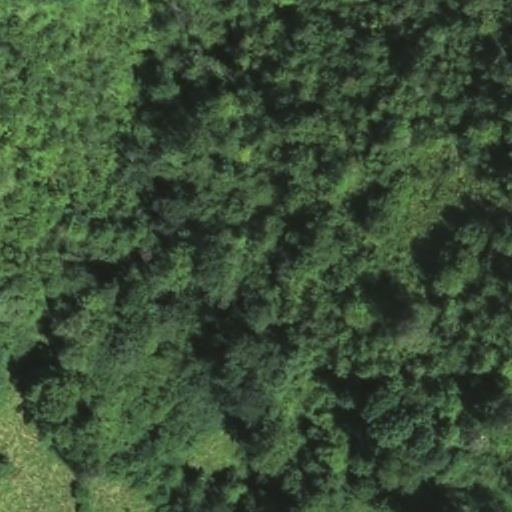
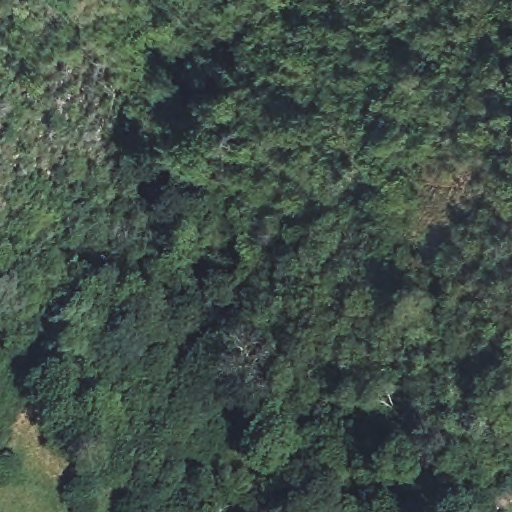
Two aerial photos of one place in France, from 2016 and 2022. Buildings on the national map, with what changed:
unchanged [(248,509),(262,512),(248,512),(248,509)]

